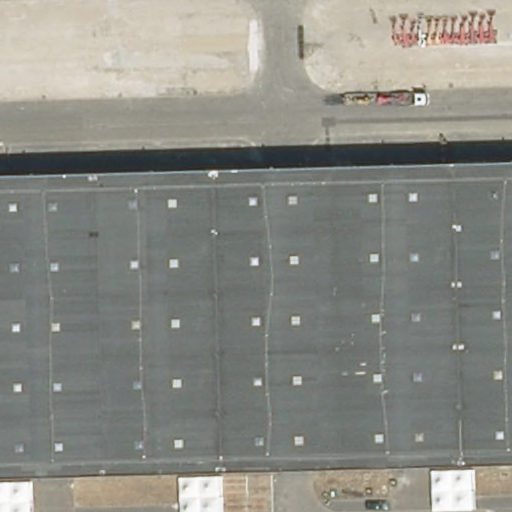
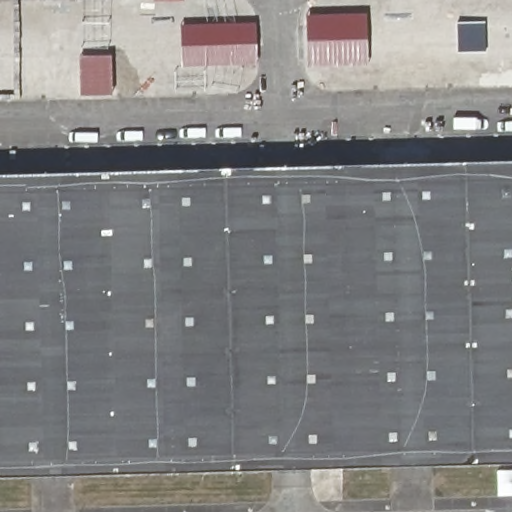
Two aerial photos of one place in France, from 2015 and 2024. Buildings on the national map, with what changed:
new [(306,15),(366,14),(367,65),(307,67),(306,15)]
new [(180,25),(254,22),(256,65),(181,67),(180,25)]
new [(79,57),(110,56),(111,95),(80,95),(79,57)]
unchanged [(262,169),(304,168),(512,162),(512,465),(433,467),(390,468),(311,470),(272,471),(74,476),(31,477),(0,478),(0,176),(262,169)]

